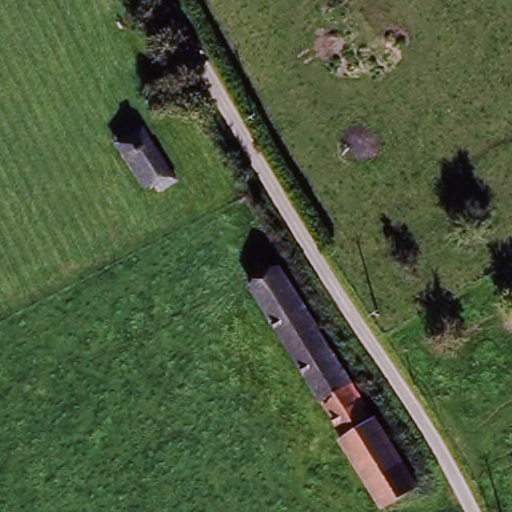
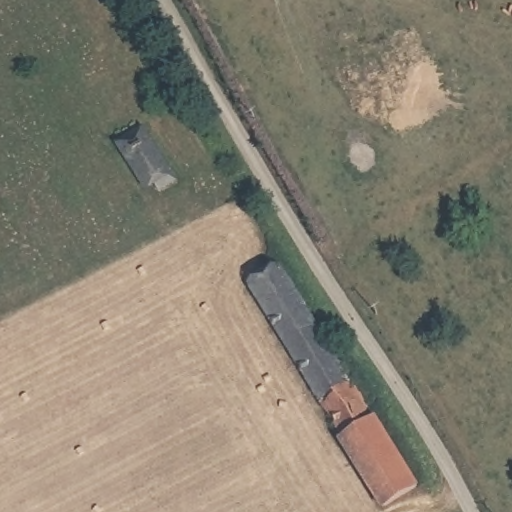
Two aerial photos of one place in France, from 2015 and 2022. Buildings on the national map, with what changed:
unchanged [(151,190),(146,180),(135,186),(123,164),(114,149),(141,134),(149,150),(161,172),(167,182),(151,190)]
unchanged [(246,290),(276,271),(369,416),(336,436),(246,290)]
unchanged [(412,485),(376,508),(333,438),(336,436),(369,416),(412,485)]

